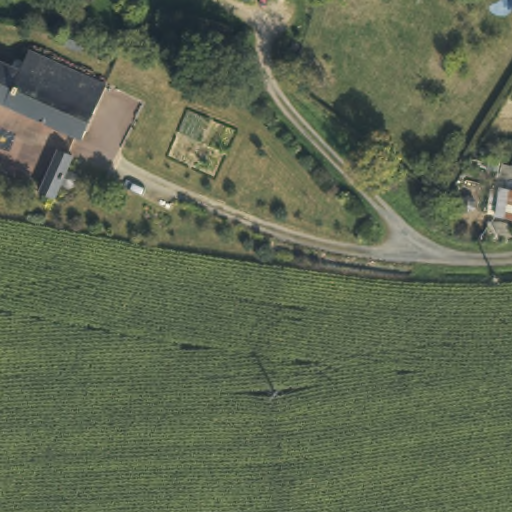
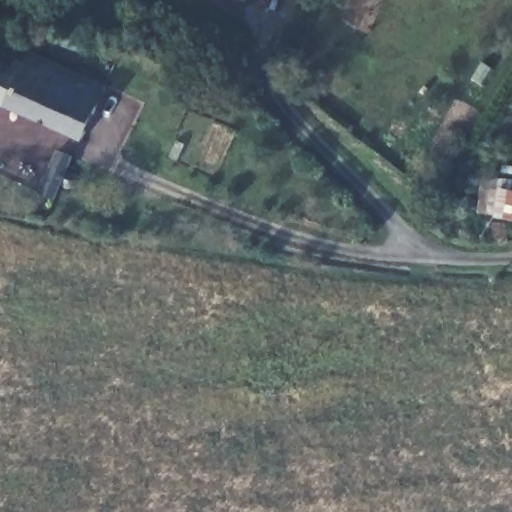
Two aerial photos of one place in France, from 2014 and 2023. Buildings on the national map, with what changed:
unchanged [(28,52),(104,85),(98,100),(98,101),(83,136),(0,102),(0,62),(21,70),(28,52)]
unchanged [(53,210),(69,166),(82,171),(77,187),(84,189),(88,194),(86,199),(83,203),(70,204),(67,215),(53,210)]

